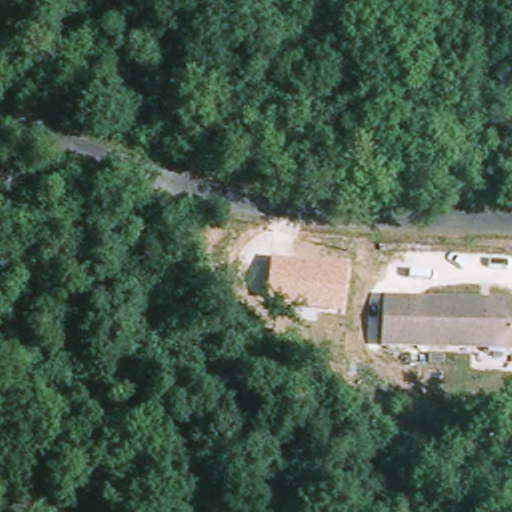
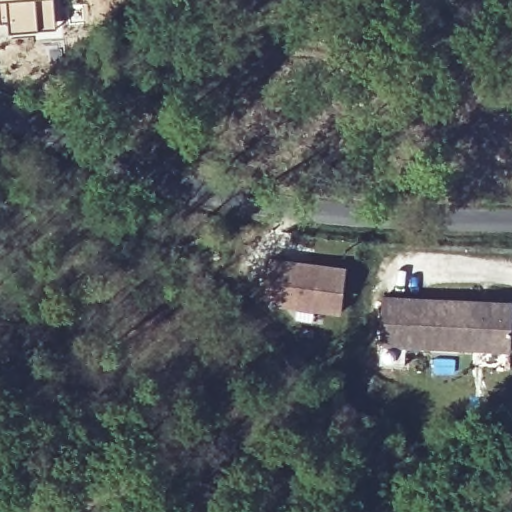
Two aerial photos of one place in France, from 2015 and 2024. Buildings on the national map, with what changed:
new [(59,27),(12,31),(11,20),(2,21),(1,0),(57,0),(59,27)]
unchanged [(343,310),(267,303),(271,259),(346,266),(343,310)]
unchanged [(412,341),(382,339),(383,316),(384,292),(474,297),(512,299),(512,340),(511,346),(412,341)]

